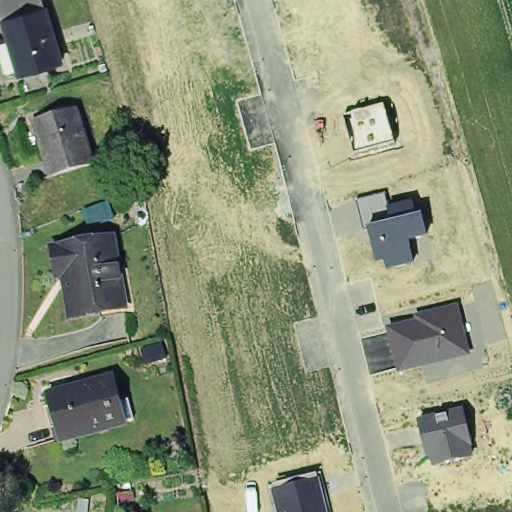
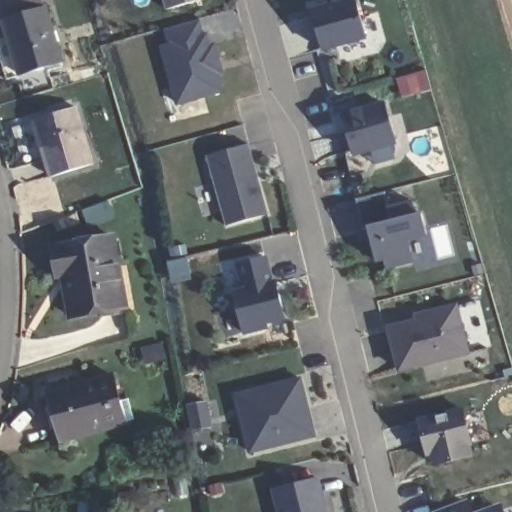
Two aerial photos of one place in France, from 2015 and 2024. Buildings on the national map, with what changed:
new [(164,0),(197,0),(166,9),(164,0)]
new [(356,0),(366,36),(323,49),(311,9),(345,0),(356,0)]
unchanged [(10,17),(50,6),(65,60),(27,71),(15,75),(4,40),(15,35),(10,17)]
new [(217,72),(222,90),(178,102),(162,47),(169,45),(165,29),(199,19),(204,35),(206,34),(209,46),(214,45),(219,61),(222,70),(217,72)]
new [(426,69),(431,88),(416,92),(401,96),(396,77),(411,73),(426,69)]
unchanged [(355,154),(344,114),(384,104),(394,142),(355,154)]
unchanged [(38,120),(80,109),(96,165),(53,176),(38,120)]
new [(248,144),(268,214),(227,225),(208,155),(248,144)]
unchanged [(408,242),(413,263),(386,270),(382,260),(374,262),(366,230),(363,230),(355,200),(384,194),(389,206),(411,200),(414,213),(421,212),(427,236),(408,242)]
unchanged [(121,301),(71,310),(68,285),(64,270),(59,241),(116,232),(123,281),(128,300),(121,301)]
new [(245,289),(238,262),(265,255),(271,282),(276,281),(285,316),(266,321),(263,327),(244,331),(234,291),(245,289)]
unchanged [(399,373),(387,325),(415,318),(414,313),(459,302),(472,353),(399,373)]
unchanged [(59,437),(47,393),(113,374),(119,394),(125,420),(110,423),(59,437)]
new [(308,407),(311,418),(315,435),(251,451),(241,413),(236,394),(258,388),(301,377),(308,407)]
new [(206,401),(211,426),(193,430),(188,404),(206,401)]
unchanged [(431,467),(418,420),(459,410),(473,456),(431,467)]
unchanged [(269,487),(319,475),(329,512),(276,512),(269,487)]
new [(467,502),(471,512),(440,512),(467,502)]
new [(501,508),(503,512),(490,512),(501,508)]

